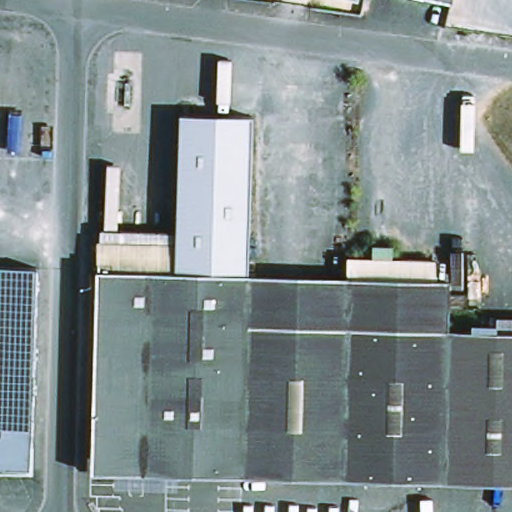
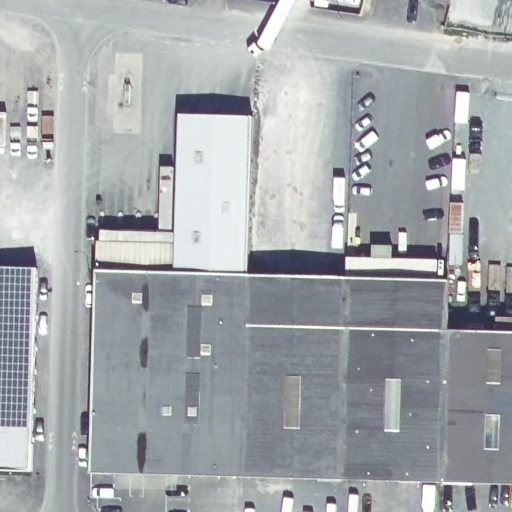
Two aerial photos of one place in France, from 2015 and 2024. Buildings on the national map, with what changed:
unchanged [(415,0),(451,0),(448,9),(415,0)]
unchanged [(98,277),(98,252),(102,252),(102,239),(177,241),(181,120),(252,122),(247,257),(247,282),(240,482),(92,476),(98,277)]
unchanged [(341,483),(347,285),(347,265),(436,268),(435,287),(437,287),(437,280),(446,281),(446,288),(445,336),(440,487),(341,483)]
unchanged [(37,268),(30,472),(0,470),(0,267),(37,268)]
unchanged [(341,483),(240,482),(247,282),(347,285),(341,483)]
unchanged [(512,488),(440,487),(445,336),(512,337),(512,488)]

